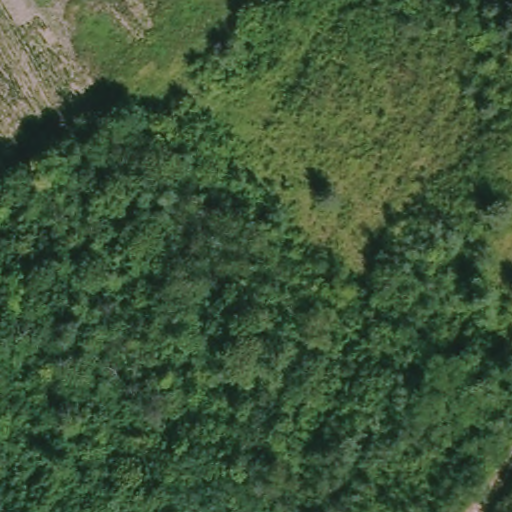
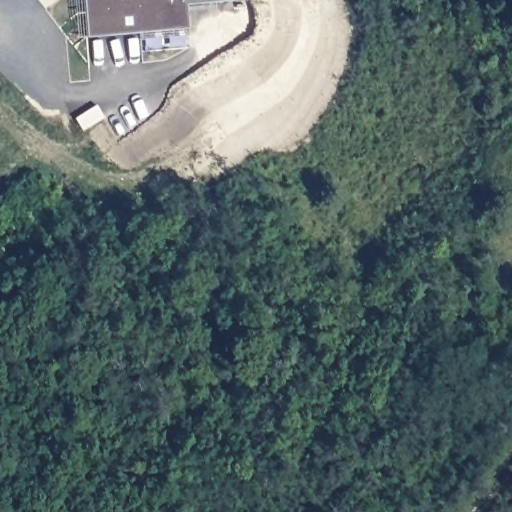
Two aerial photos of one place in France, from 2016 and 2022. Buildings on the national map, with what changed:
new [(189,4),(191,27),(88,36),(85,0),(227,0),(189,4)]

